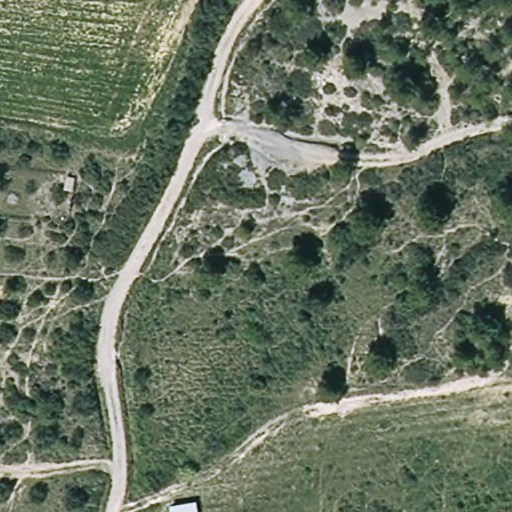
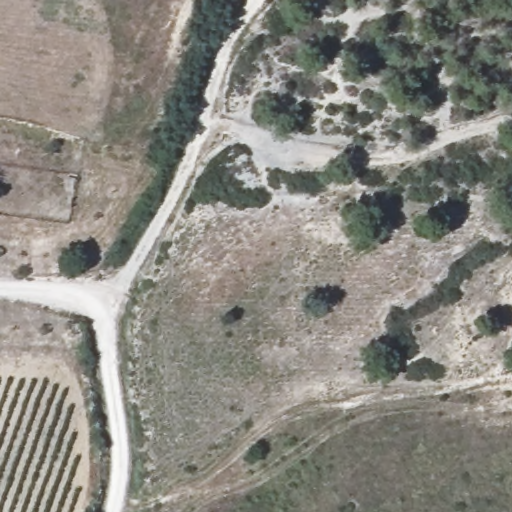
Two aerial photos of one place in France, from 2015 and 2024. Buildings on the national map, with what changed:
[]

